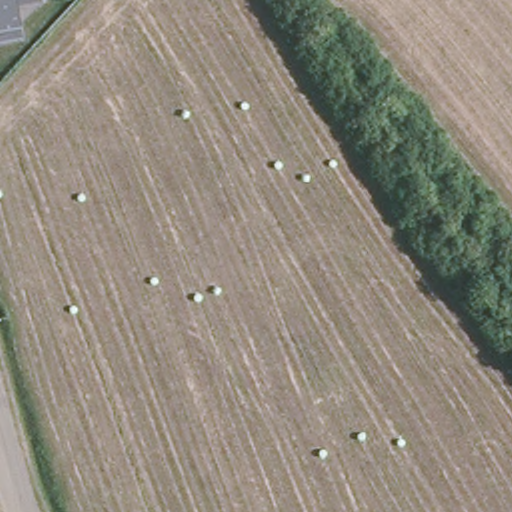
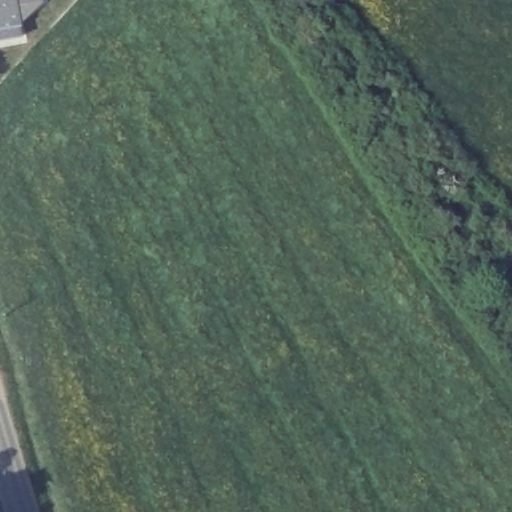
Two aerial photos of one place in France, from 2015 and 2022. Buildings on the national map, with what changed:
unchanged [(0,36),(0,0),(11,0),(16,33),(0,36)]

